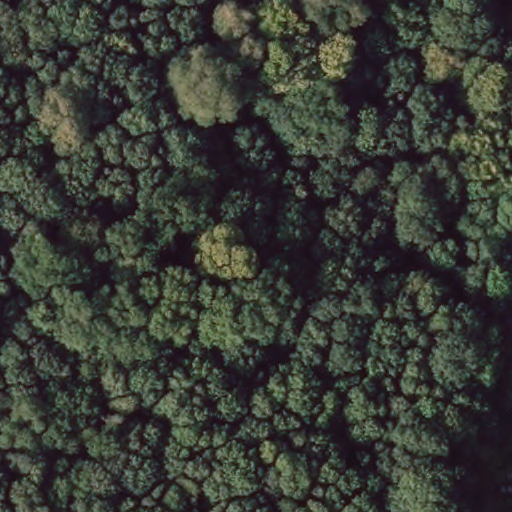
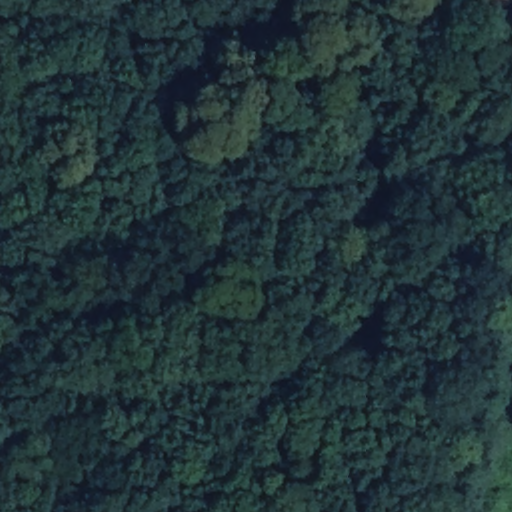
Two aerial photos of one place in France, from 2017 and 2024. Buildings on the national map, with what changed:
unchanged [(467,0),(512,0),(512,4),(472,16),(467,0)]

